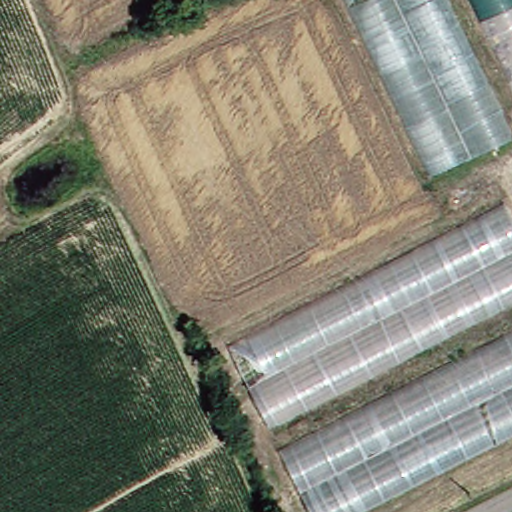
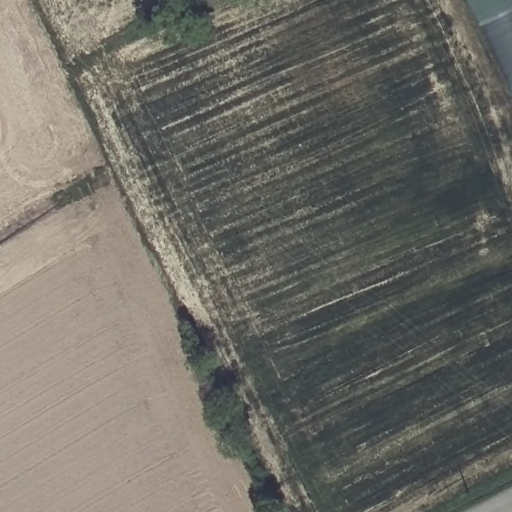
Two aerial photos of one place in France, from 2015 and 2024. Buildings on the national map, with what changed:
demolished [(429,169),(351,0),(446,0),(510,138),(429,169)]
unchanged [(473,0),(512,0),(512,83),(473,0)]
demolished [(268,423),(229,341),(503,198),(512,217),(512,299),(268,423)]
demolished [(354,512),(311,512),(278,447),(512,327),(512,429),(354,512)]

